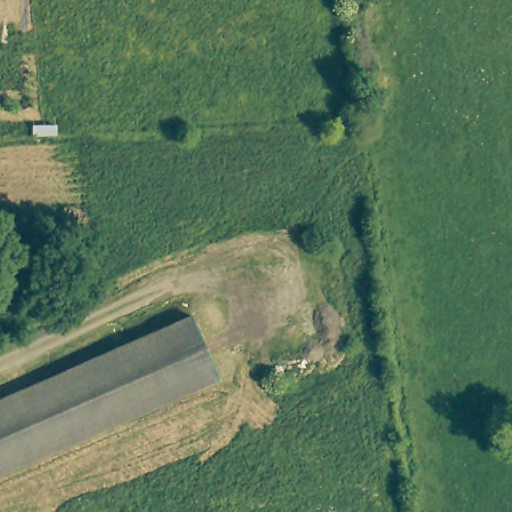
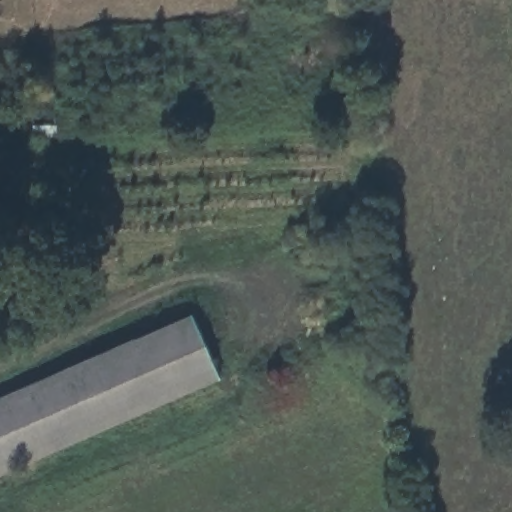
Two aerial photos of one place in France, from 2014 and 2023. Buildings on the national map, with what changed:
unchanged [(212,372),(0,466),(0,398),(185,317),(212,372)]

